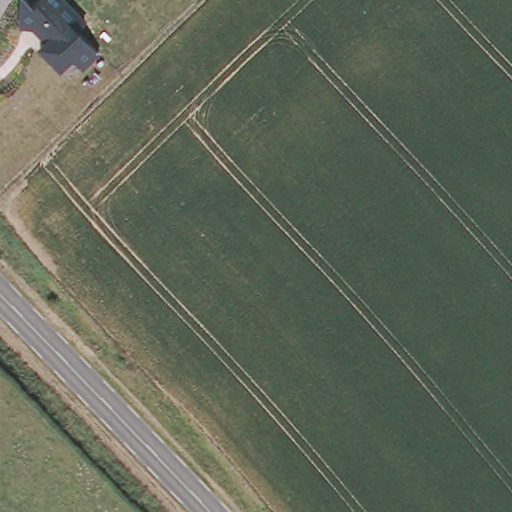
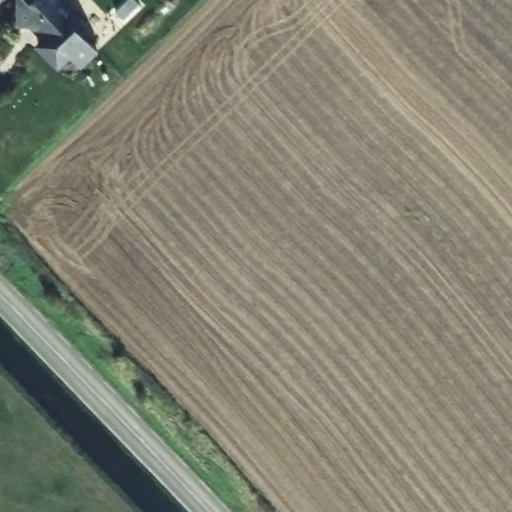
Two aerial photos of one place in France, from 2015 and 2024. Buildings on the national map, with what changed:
unchanged [(29,25),(18,24),(18,0),(28,0),(31,3),(35,0),(66,0),(85,20),(76,29),(96,50),(81,67),(73,58),(58,70),(34,47),(43,39),(29,25)]

